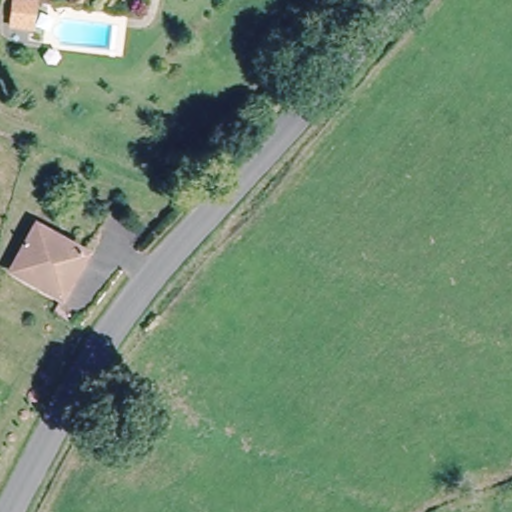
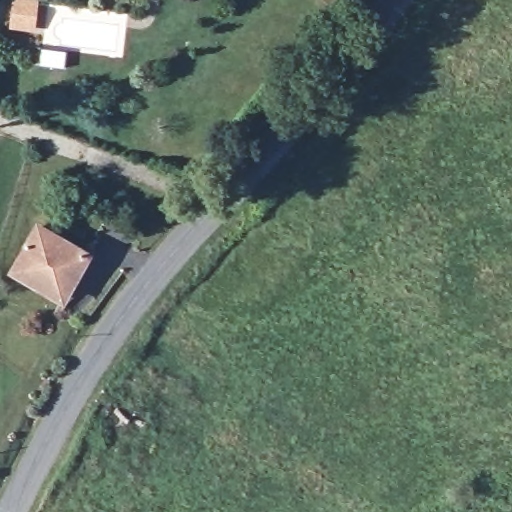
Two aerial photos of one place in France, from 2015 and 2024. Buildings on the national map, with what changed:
unchanged [(29,3),(25,28),(10,25),(14,0),(29,3)]
unchanged [(84,256),(59,298),(12,271),(37,230),(84,256)]

